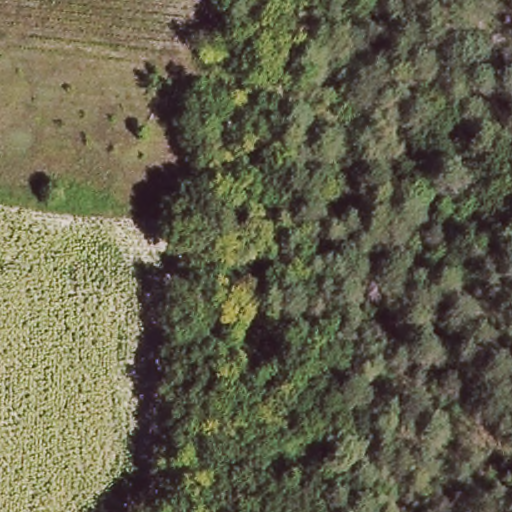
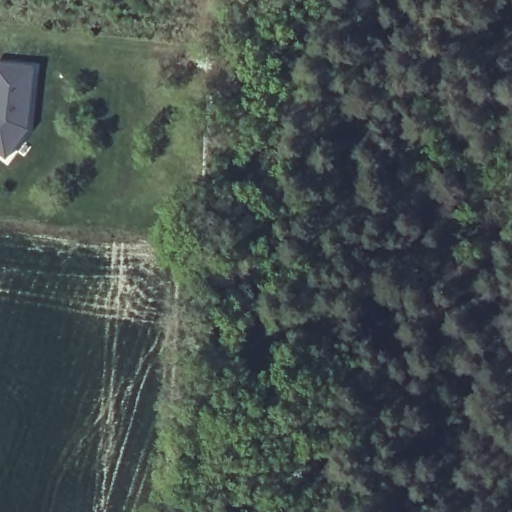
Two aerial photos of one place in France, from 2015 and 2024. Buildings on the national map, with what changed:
new [(7,159),(0,154),(0,63),(37,67),(29,130),(7,159)]

